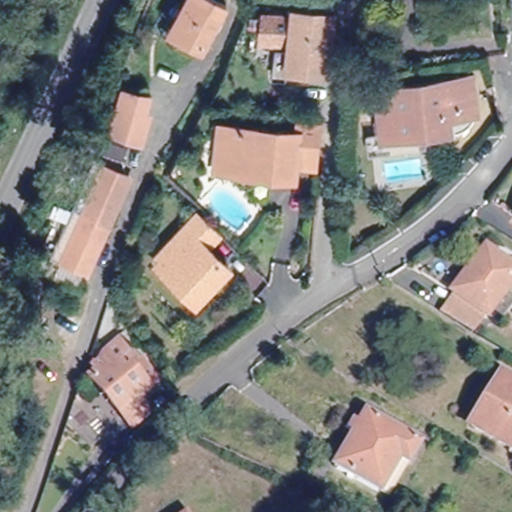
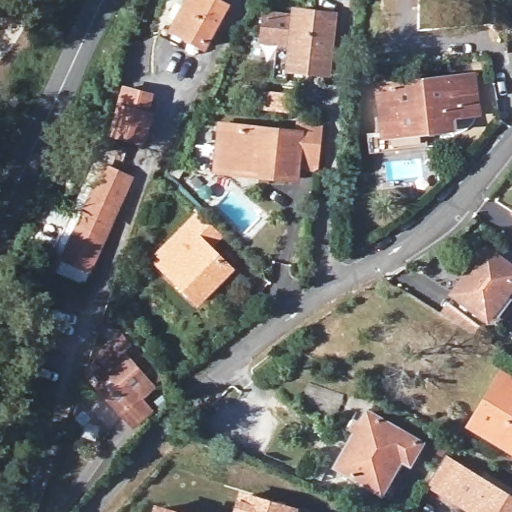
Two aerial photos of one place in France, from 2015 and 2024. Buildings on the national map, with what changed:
unchanged [(216,0),(227,6),(204,48),(172,29),(187,0),(216,0)]
unchanged [(278,65),(282,39),(294,41),(296,31),(267,28),(270,1),(298,4),(299,0),(340,5),(332,65),(292,60),(292,66),(278,65)]
unchanged [(457,114),(457,124),(388,131),(383,83),(478,74),(481,99),(482,111),(457,114)]
unchanged [(127,84),(154,92),(149,109),(157,111),(149,140),(116,125),(127,84)]
unchanged [(284,164),(283,172),(214,163),(207,162),(212,120),(220,121),(288,129),(290,119),(312,122),(308,161),(307,166),(284,164)]
unchanged [(64,260),(105,168),(130,179),(89,271),(64,260)]
unchanged [(192,253),(214,274),(185,304),(162,280),(159,283),(144,268),(162,250),(158,245),(185,219),(205,240),(192,253)]
unchanged [(491,314),(457,289),(490,245),(512,261),(512,285),(491,314)]
unchanged [(133,397),(145,411),(127,427),(86,379),(92,374),(85,366),(96,348),(106,360),(124,345),(154,379),(133,397)]
unchanged [(470,425),(500,376),(512,384),(512,451),(470,425)]
unchanged [(381,491),(336,464),(366,413),(420,444),(408,464),(390,496),(381,491)]
new [(428,434),(448,444),(444,453),(512,495),(512,512),(447,512),(420,495),(442,458),(420,444),(428,434)]
new [(238,491),(298,508),(297,512),(231,512),(238,491)]
new [(153,504),(180,512),(151,512),(153,504)]

